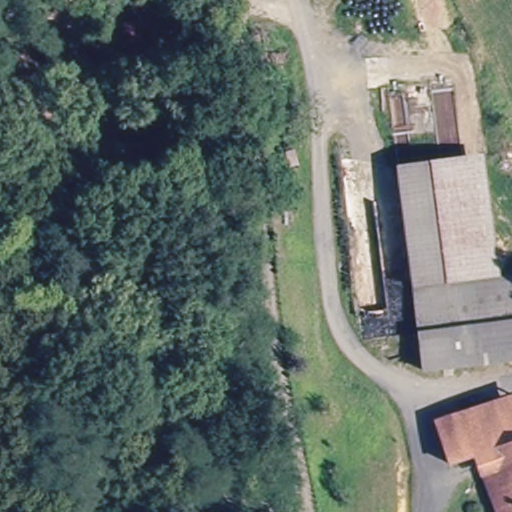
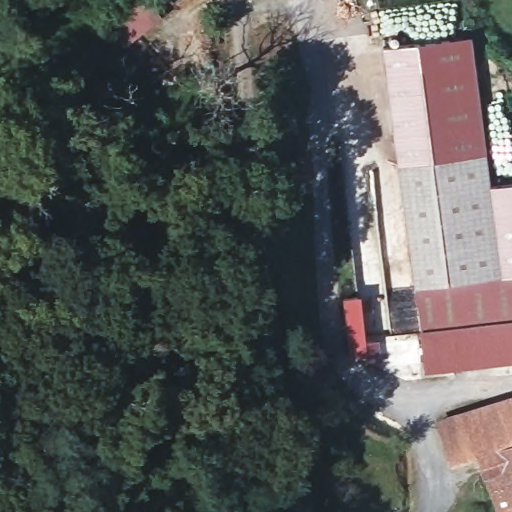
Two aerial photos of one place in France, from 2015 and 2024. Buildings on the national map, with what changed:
new [(118,46),(106,24),(150,0),(161,22),(118,46)]
new [(388,47),(476,35),(491,152),(466,154),(404,161),(388,47)]
unchanged [(466,154),(491,152),(501,272),(476,275),(466,154)]
unchanged [(417,321),(404,161),(466,154),(476,275),(501,272),(512,270),(512,308),(452,315),(452,320),(417,321)]
new [(501,272),(494,187),(512,185),(512,270),(501,272)]
unchanged [(456,368),(452,320),(452,315),(512,308),(512,362),(456,368)]
unchanged [(456,368),(422,372),(417,321),(452,320),(456,368)]
unchanged [(481,467),(468,465),(480,460),(465,415),(492,405),(512,397),(512,512),(496,512),(481,467)]
unchanged [(465,415),(480,460),(468,465),(453,461),(440,423),(465,415)]

